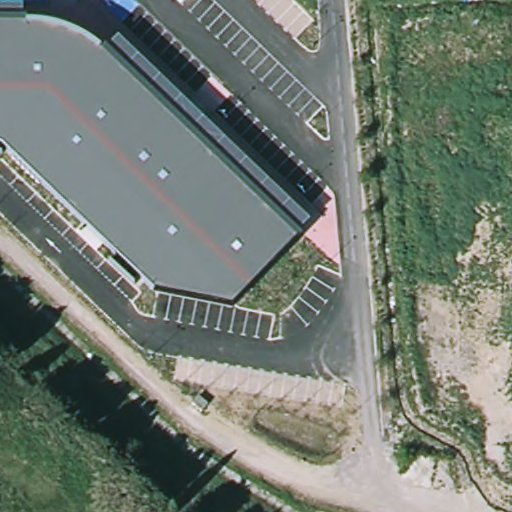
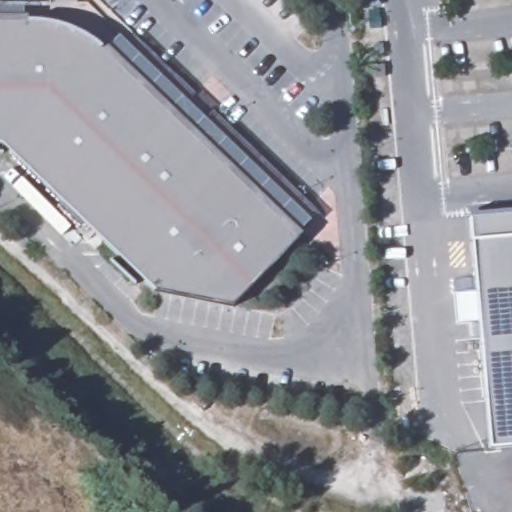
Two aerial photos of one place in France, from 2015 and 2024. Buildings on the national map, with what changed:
unchanged [(22,14),(27,14),(27,22),(52,25),(80,35),(102,51),(118,36),(305,216),(292,229),(298,236),(235,304),(155,290),(3,144),(0,143),(0,4),(22,4),(22,14)]
new [(490,450),(470,241),(467,216),(512,211),(512,448),(490,450)]

